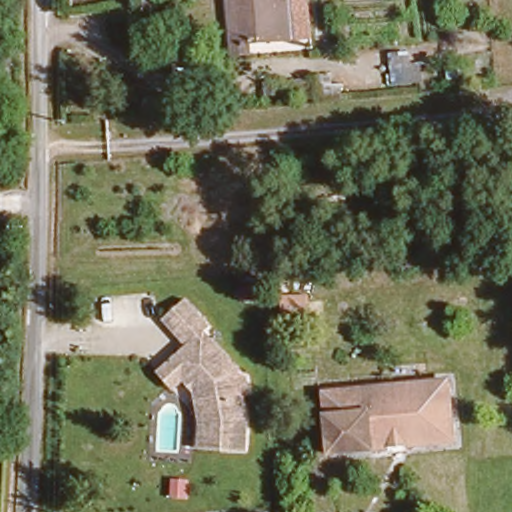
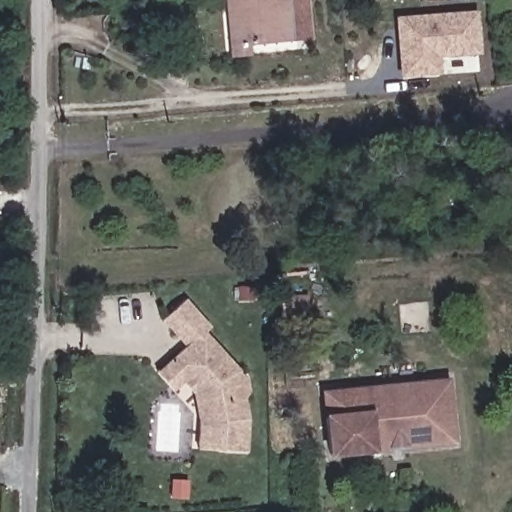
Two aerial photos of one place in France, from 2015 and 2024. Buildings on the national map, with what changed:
unchanged [(290,2),(292,32),(250,36),(251,47),(232,50),(227,0),(290,0),(290,2)]
new [(480,54),(440,57),(440,74),(400,77),(395,17),(477,11),(480,54)]
demolished [(389,85),(385,53),(408,51),(410,62),(422,59),(425,82),(389,85)]
unchanged [(197,436),(197,417),(198,386),(185,373),(176,383),(174,381),(159,367),(175,349),(185,337),(175,328),(160,313),(176,295),(180,291),(207,317),(202,322),(240,357),(240,362),(246,367),(246,381),(242,388),(246,407),(246,442),(221,442),(197,442),(197,436)]
unchanged [(445,371),(452,432),(328,445),(321,382),(445,371)]

